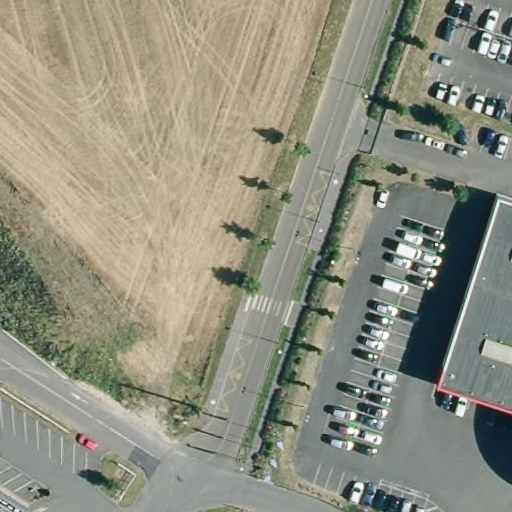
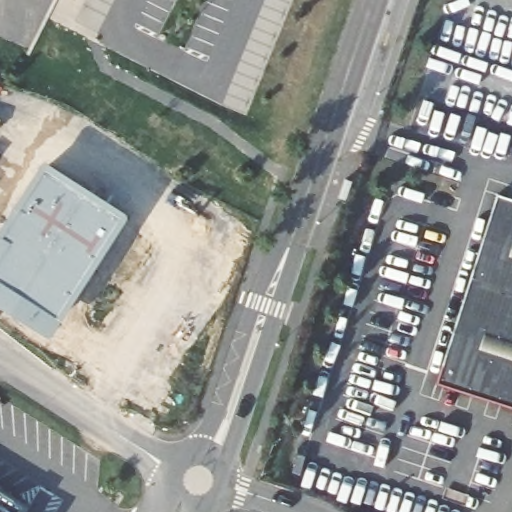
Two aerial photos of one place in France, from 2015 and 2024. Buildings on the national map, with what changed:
new [(0,307),(0,230),(44,161),(130,216),(50,339),(0,307)]
unchanged [(512,417),(435,393),(494,204),(512,209),(512,417)]
unchanged [(24,512),(0,512),(0,496),(24,512)]

